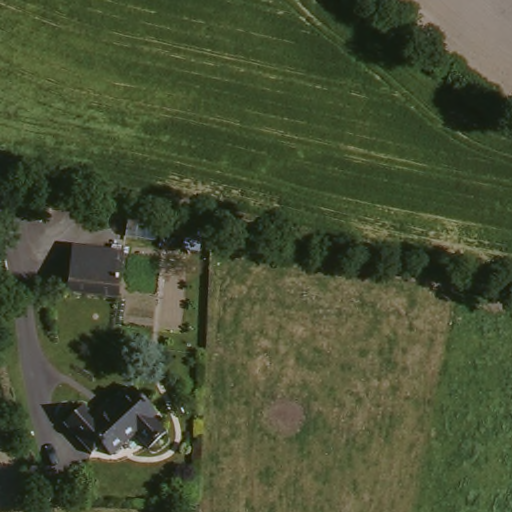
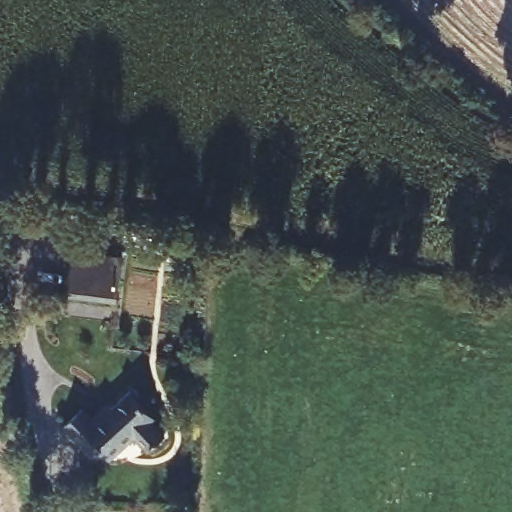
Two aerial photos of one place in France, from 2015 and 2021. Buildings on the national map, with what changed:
unchanged [(77,242),(126,249),(120,293),(71,287),(77,242)]
unchanged [(86,403),(97,417),(133,385),(159,411),(155,415),(169,428),(152,445),(137,430),(115,451),(105,441),(97,448),(67,419),(86,403)]

